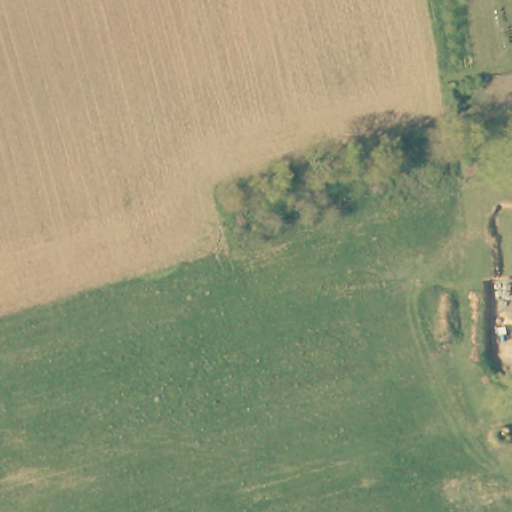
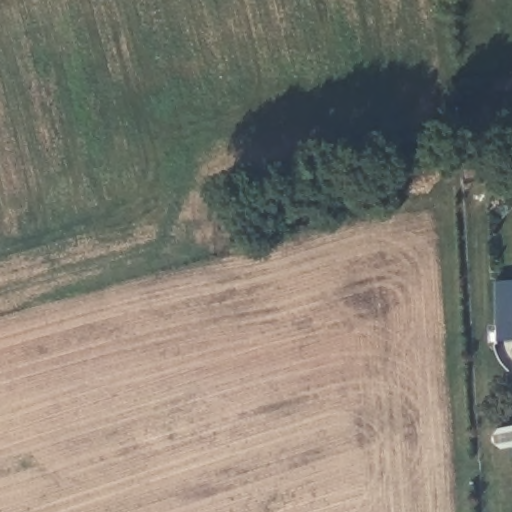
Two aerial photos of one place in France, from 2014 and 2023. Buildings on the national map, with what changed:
new [(497,342),(495,282),(512,281),(512,343),(497,342)]
unchanged [(488,425),(491,424),(493,422),(496,422),(499,423),(502,425),(503,427),(505,430),(505,433),(503,436),(502,438),(500,440),(497,441),(494,441),(492,440),(489,439),(487,437),(486,434),(486,431),(487,428),(488,425)]

